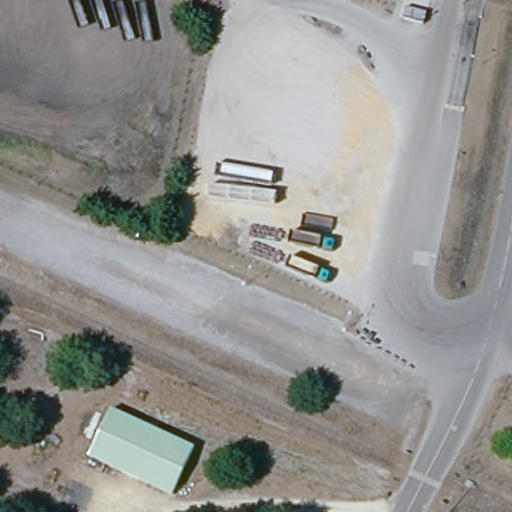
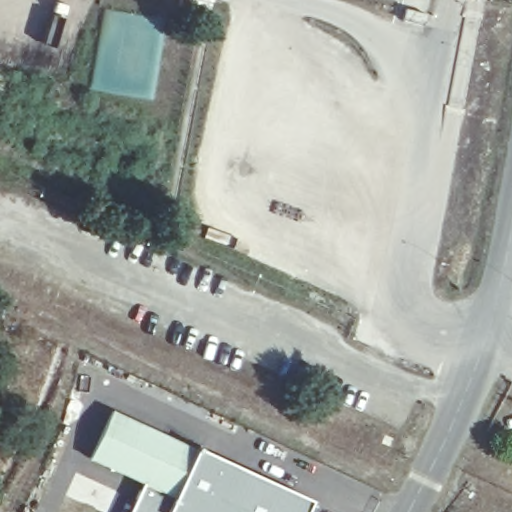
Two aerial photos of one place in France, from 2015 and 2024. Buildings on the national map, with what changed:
unchanged [(172,499),(90,460),(112,412),(194,452),(172,499)]
new [(143,485),(172,499),(194,452),(196,449),(312,502),(307,512),(131,512),(143,485)]

